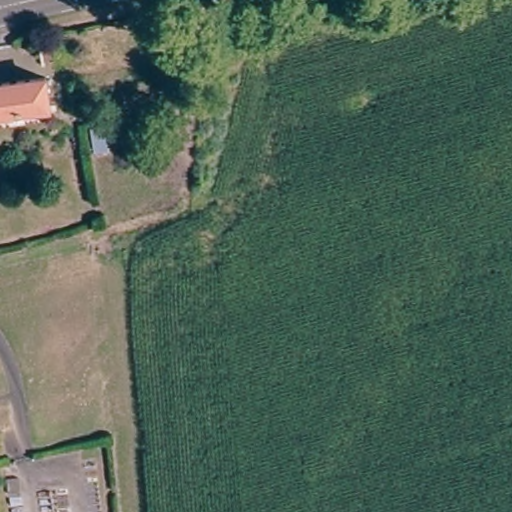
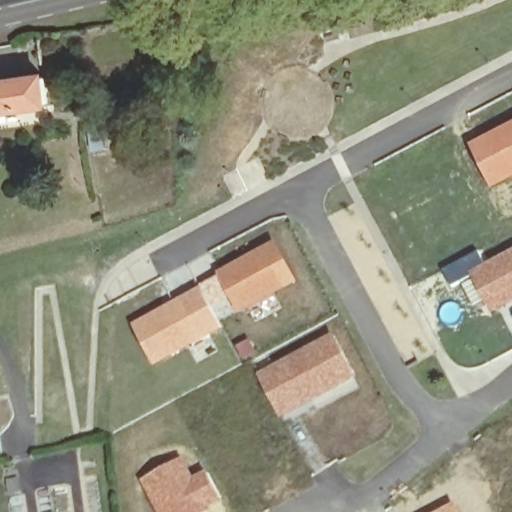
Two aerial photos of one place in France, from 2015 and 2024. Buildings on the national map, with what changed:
unchanged [(46,108),(0,115),(0,86),(43,80),(46,108)]
new [(512,123),(512,180),(494,189),(471,143),(512,123)]
new [(218,274),(216,272),(275,239),(300,283),(237,316),(221,322),(224,328),(154,366),(131,323),(200,285),(218,274)]
new [(489,315),(483,302),(474,307),(461,282),(450,287),(440,269),(479,250),(485,262),(512,248),(512,303),(489,315)]
new [(355,376),(281,417),(260,377),(334,339),(355,376)]
new [(182,455),(194,476),(207,469),(224,501),(206,512),(155,512),(137,479),(182,455)]
new [(455,502),(460,512),(437,512),(455,502)]

